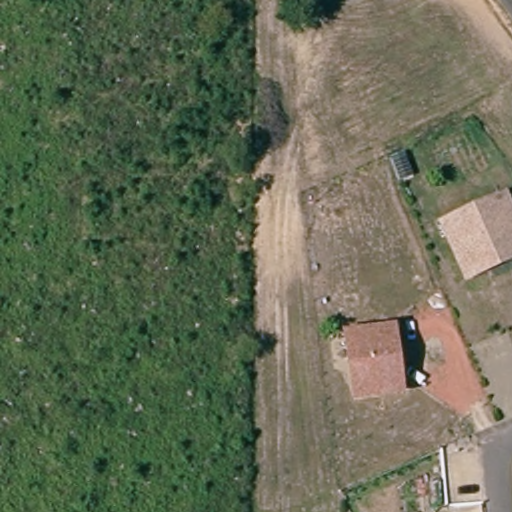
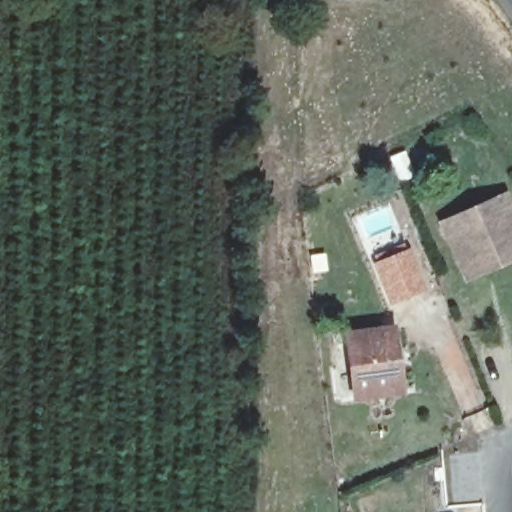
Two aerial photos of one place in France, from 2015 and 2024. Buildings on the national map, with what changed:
unchanged [(412,177),(399,182),(390,159),(403,154),(412,177)]
unchanged [(485,272),(466,280),(441,224),(505,196),(512,213),(512,260),(485,272)]
new [(374,263),(377,262),(374,254),(404,242),(407,248),(410,247),(427,291),(391,306),(374,263)]
unchanged [(356,396),(348,336),(392,331),(395,347),(398,375),(400,390),(356,396)]

